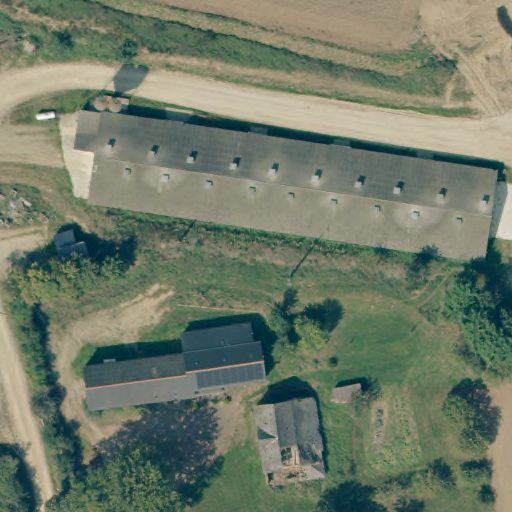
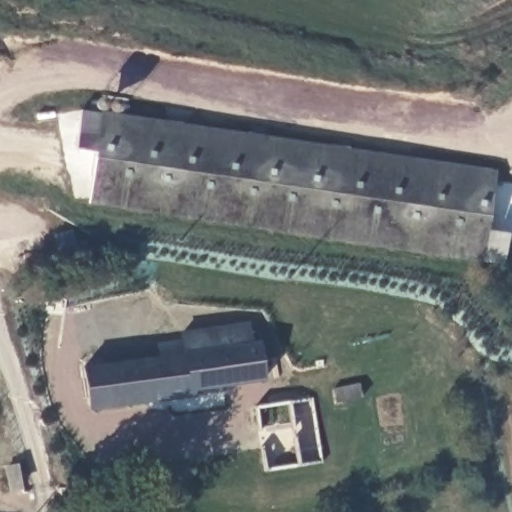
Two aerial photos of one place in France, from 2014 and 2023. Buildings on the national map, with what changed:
unchanged [(95,135),(98,112),(492,179),(482,263),(84,199),(92,150),(71,146),(72,131),(95,135)]
unchanged [(83,365),(104,363),(137,360),(136,356),(147,354),(147,358),(186,355),(180,331),(257,323),(263,383),(192,390),(193,395),(87,405),(83,365)]
unchanged [(331,386),(360,382),(362,397),(333,400),(331,386)]
unchanged [(308,395),(312,394),(320,476),(261,483),(253,401),(308,395)]

